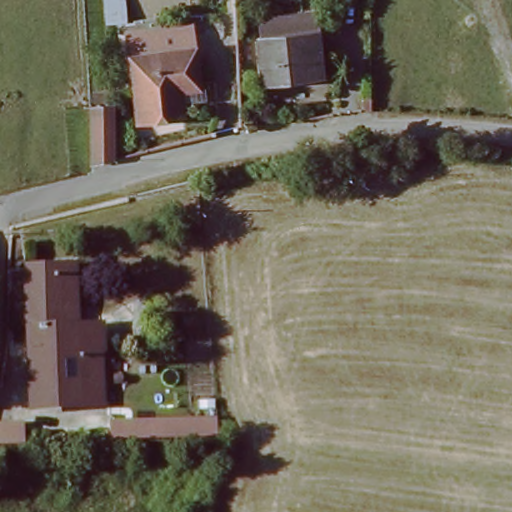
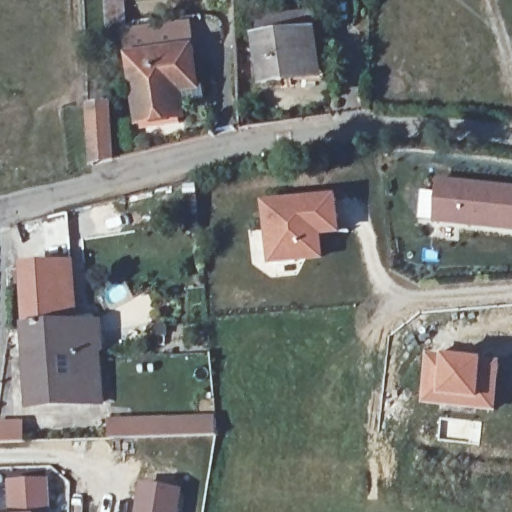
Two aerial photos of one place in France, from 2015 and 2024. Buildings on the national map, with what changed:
unchanged [(311,33),(315,78),(260,84),(255,39),(311,33)]
unchanged [(129,54),(197,46),(202,91),(181,94),(185,120),(137,126),(129,54)]
unchanged [(114,105),(114,163),(90,168),(89,106),(114,105)]
new [(436,180),(512,188),(512,227),(432,220),(436,180)]
new [(339,195),(343,235),(323,237),(324,260),(269,264),(262,202),(339,195)]
unchanged [(68,264),(69,327),(98,334),(98,401),(25,402),(22,266),(68,264)]
new [(500,366),(496,411),(477,408),(479,399),(462,397),(460,407),(425,401),(430,357),(500,366)]
new [(215,416),(215,438),(110,438),(109,418),(215,416)]
new [(22,427),(22,444),(0,444),(0,427),(22,427)]
demolished [(8,434),(8,451),(0,451),(0,434),(8,434)]
new [(53,512),(9,512),(9,481),(50,478),(53,512)]
new [(182,512),(137,512),(142,482),(186,488),(182,512)]

